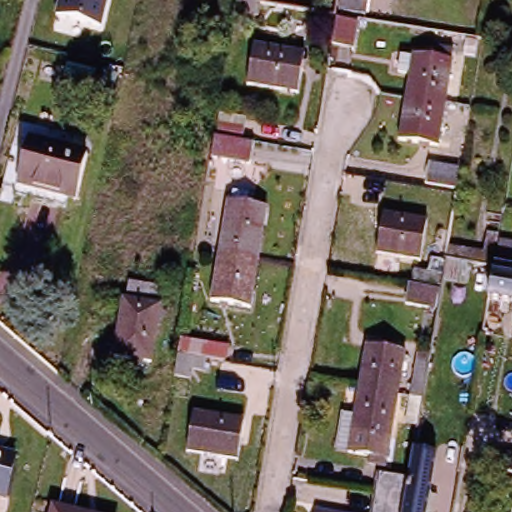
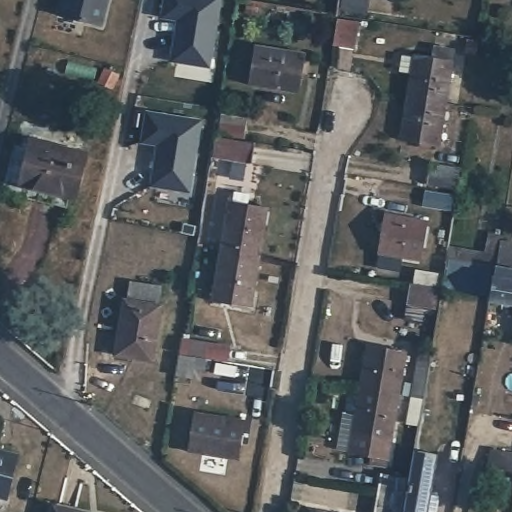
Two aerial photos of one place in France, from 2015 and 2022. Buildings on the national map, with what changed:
unchanged [(58,17),(61,0),(111,0),(105,28),(58,17)]
new [(221,0),(210,67),(172,60),(178,20),(162,17),(165,0),(221,0)]
unchanged [(342,0),(369,0),(367,13),(341,9),(342,0)]
unchanged [(355,49),(335,45),(340,19),(359,22),(355,49)]
unchanged [(301,94),(250,85),(257,45),(307,54),(301,94)]
unchanged [(398,73),(402,56),(414,58),(415,55),(435,59),(437,47),(457,50),(447,105),(407,99),(411,75),(398,73)]
new [(118,74),(112,85),(102,80),(107,68),(118,74)]
unchanged [(400,141),(407,99),(447,105),(440,147),(400,141)]
new [(147,111),(202,121),(190,192),(152,185),(158,144),(142,142),(147,111)]
unchanged [(238,138),(216,134),(218,120),(240,124),(238,138)]
unchanged [(73,194),(13,179),(23,135),(84,150),(73,194)]
unchanged [(209,157),(212,136),(250,143),(246,164),(209,157)]
unchanged [(457,169),(455,177),(460,177),(457,193),(430,189),(435,165),(457,169)]
unchanged [(224,195),(227,195),(228,189),(242,191),(241,199),(265,202),(257,253),(217,246),(224,195)]
unchanged [(417,262),(373,254),(380,213),(425,221),(417,262)]
unchanged [(505,241),(512,242),(512,260),(497,257),(490,256),(494,230),(506,232),(505,241)]
unchanged [(209,294),(217,246),(257,253),(250,302),(209,294)]
new [(450,260),(489,265),(482,294),(445,288),(450,260)]
unchanged [(512,294),(484,289),(488,267),(512,271),(512,294)]
unchanged [(443,275),(441,289),(414,284),(416,270),(443,275)]
unchanged [(154,300),(123,295),(127,280),(157,285),(154,300)]
unchanged [(432,309),(405,304),(408,289),(435,293),(432,309)]
unchanged [(147,361),(110,354),(122,298),(158,304),(147,361)]
unchanged [(501,313),(497,335),(483,333),(487,310),(501,313)]
unchanged [(194,369),(192,378),(177,375),(180,354),(182,338),(227,346),(223,362),(205,359),(204,370),(194,369)]
unchanged [(367,339),(408,347),(400,389),(360,382),(367,339)]
unchanged [(415,361),(417,349),(430,352),(427,363),(422,393),(418,418),(407,416),(410,391),(415,361)]
unchanged [(354,414),(360,382),(400,389),(388,464),(370,461),(370,454),(348,450),(337,448),(343,412),(354,414)]
unchanged [(239,460),(189,452),(195,412),(245,419),(239,460)]
unchanged [(447,441),(464,444),(460,467),(444,464),(447,441)]
unchanged [(379,487),(382,471),(408,476),(413,445),(437,449),(430,492),(438,494),(435,512),(427,512),(402,512),(403,504),(400,503),(398,512),(374,512),(379,487)]
unchanged [(512,472),(487,469),(493,449),(512,452),(512,472)]
unchanged [(7,497),(0,495),(0,450),(17,454),(7,497)]
unchanged [(54,508),(74,512),(53,512),(54,508)]
unchanged [(317,511),(323,512),(317,512),(317,511)]

